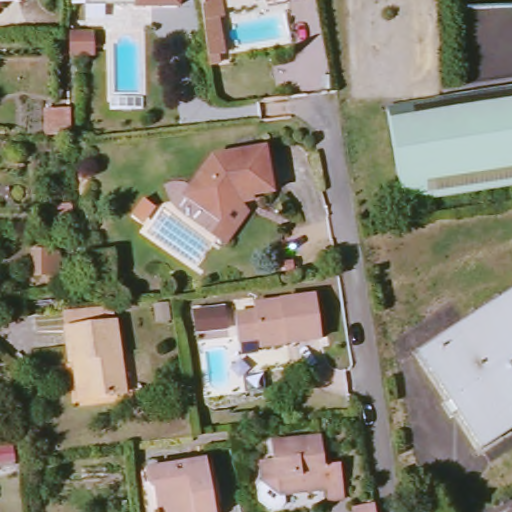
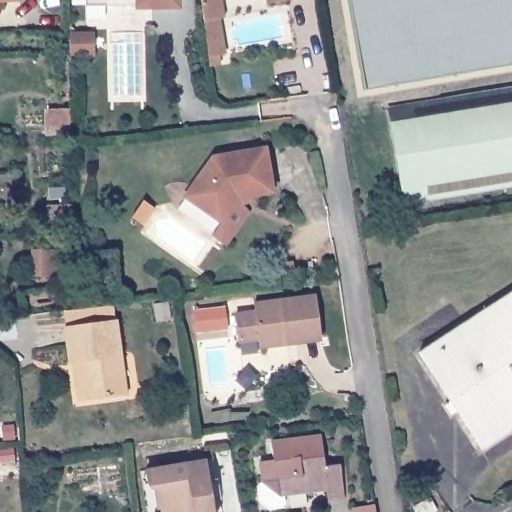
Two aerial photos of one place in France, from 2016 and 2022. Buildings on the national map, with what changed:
unchanged [(0,3),(0,0),(14,0),(14,3),(0,3)]
unchanged [(96,0),(149,0),(150,6),(96,6),(96,0)]
unchanged [(150,6),(149,0),(187,0),(187,6),(150,6)]
unchanged [(221,0),(223,17),(220,19),(226,54),(220,55),(220,66),(210,67),(200,0),(221,0)]
unchanged [(268,0),(306,0),(306,3),(269,5),(268,0)]
new [(367,90),(351,0),(512,0),(512,65),(367,90)]
unchanged [(512,88),(512,187),(402,207),(385,109),(512,88)]
unchanged [(70,110),(71,139),(45,140),(45,112),(70,110)]
unchanged [(229,239),(213,230),(222,216),(188,190),(215,154),(267,146),(273,188),(241,193),(247,212),(229,239)]
unchanged [(132,210),(141,216),(128,232),(120,226),(132,210)]
unchanged [(32,252),(60,253),(60,279),(30,278),(32,252)]
unchanged [(484,454),(419,363),(470,326),(512,296),(512,433),(484,454)]
unchanged [(251,314),(250,308),(312,298),(318,338),(255,347),(254,340),(235,343),(232,317),(251,314)]
unchanged [(224,310),(227,333),(194,337),(192,313),(224,310)]
unchanged [(72,366),(68,337),(65,321),(75,319),(115,314),(117,330),(127,400),(92,405),(79,407),(72,366)]
unchanged [(322,439),(327,469),(340,467),(346,498),(327,503),(324,490),(275,498),(275,485),(264,486),(262,465),(270,464),(269,446),(322,439)]
unchanged [(208,455),(212,475),(221,473),(225,494),(215,496),(218,512),(154,512),(147,465),(208,455)]

